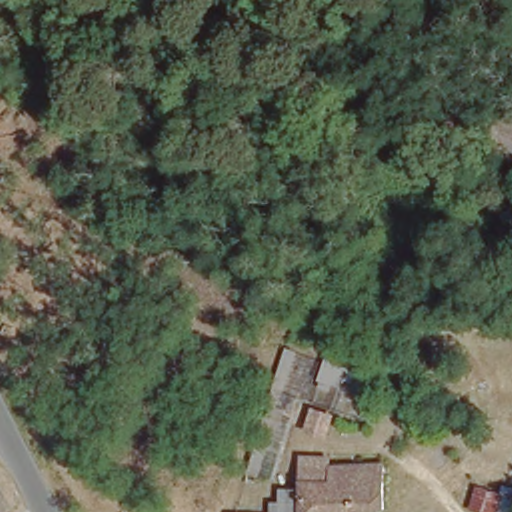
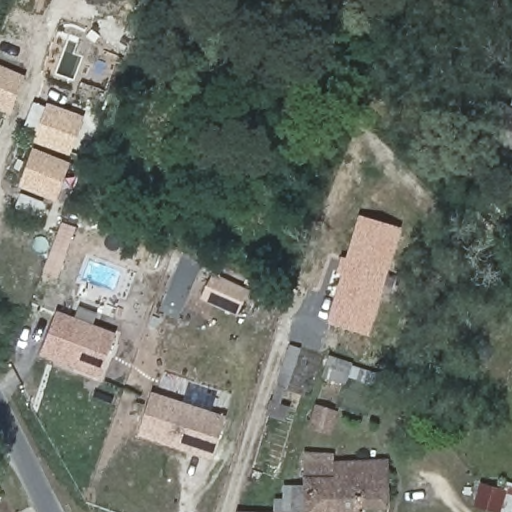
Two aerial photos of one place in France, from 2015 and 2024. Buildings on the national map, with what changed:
new [(0,111),(0,64),(26,75),(9,115),(0,111)]
new [(82,115),(70,154),(33,142),(46,103),(82,115)]
unchanged [(506,111),(512,114),(512,146),(495,139),(506,111)]
new [(55,202),(18,187),(32,148),(69,163),(55,202)]
new [(369,336),(327,324),(359,217),(401,229),(369,336)]
new [(61,223),(75,228),(70,239),(59,274),(44,269),(57,234),(61,223)]
new [(240,314),(216,304),(203,299),(213,276),(225,281),(250,290),(240,314)]
new [(116,334),(100,379),(39,356),(57,312),(116,334)]
unchanged [(0,342),(0,341),(8,328),(17,333),(9,347),(0,342)]
demolished [(338,342),(359,349),(354,364),(387,374),(370,418),(319,400),(338,342)]
demolished [(20,366),(33,343),(79,369),(65,392),(20,366)]
new [(300,349),(281,403),(290,406),(285,423),(265,415),(291,345),(300,349)]
new [(375,388),(356,379),(355,384),(347,381),(344,387),(320,376),(331,354),(380,377),(375,388)]
new [(150,395),(222,417),(210,458),(137,436),(150,395)]
new [(331,437),(307,429),(315,404),(340,412),(331,437)]
unchanged [(393,454),(396,508),(362,510),(362,512),(232,512),(285,510),(285,483),(305,482),(303,459),(393,454)]
unchanged [(512,489),(512,497),(508,512),(497,512),(475,508),(480,481),(512,489)]

